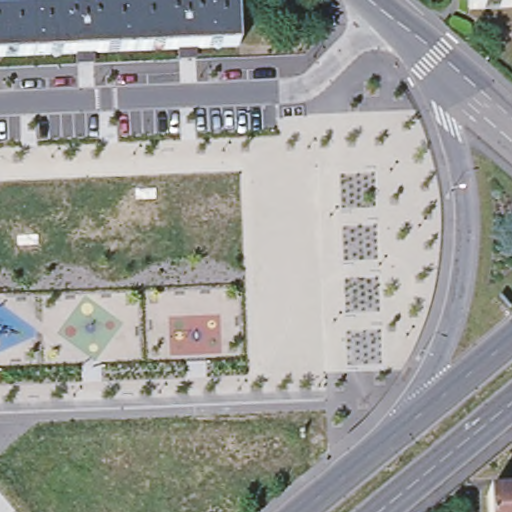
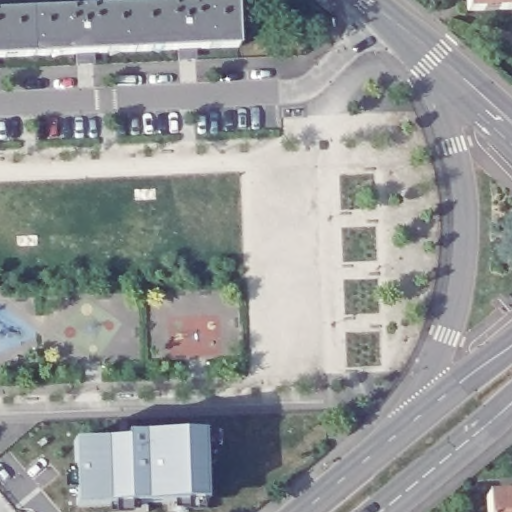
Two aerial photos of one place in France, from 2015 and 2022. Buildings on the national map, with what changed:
unchanged [(466,0),(512,0),(512,10),(466,11),(466,0)]
unchanged [(78,62),(78,55),(22,57),(77,11),(236,4),(238,48),(192,50),(193,57),(181,58),(180,50),(90,54),(90,62),(78,62)]
unchanged [(77,11),(22,57),(0,58),(0,15),(77,11)]
new [(214,431),(206,431),(210,501),(78,505),(75,441),(67,440),(67,435),(121,434),(121,430),(213,426),(214,431)]
unchanged [(488,506),(512,505),(512,512),(489,512),(488,506)]

